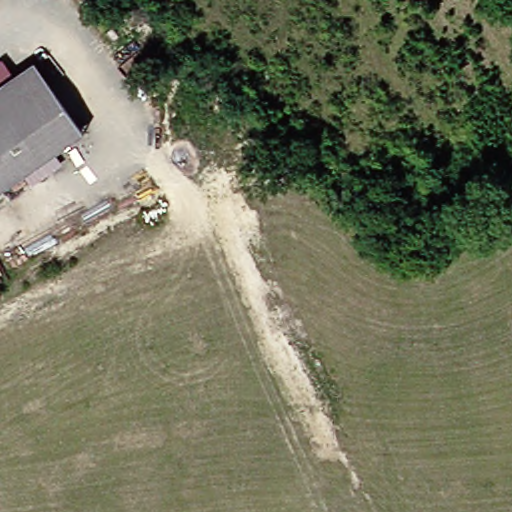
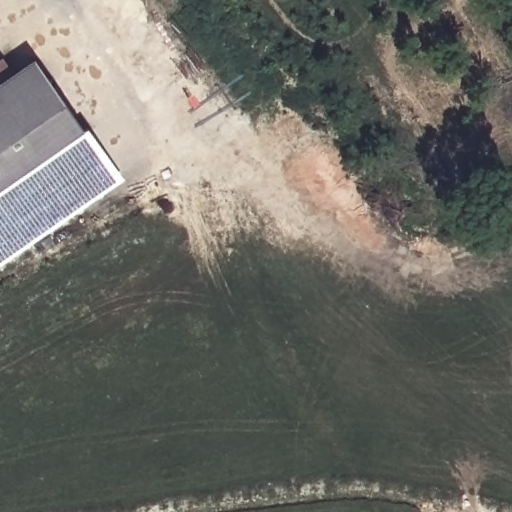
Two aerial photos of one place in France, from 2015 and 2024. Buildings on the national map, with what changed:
unchanged [(3,90),(45,64),(92,139),(51,169),(3,90)]
unchanged [(0,93),(3,90),(51,169),(0,204),(0,93)]
new [(0,266),(0,204),(51,169),(92,139),(123,183),(0,266)]

